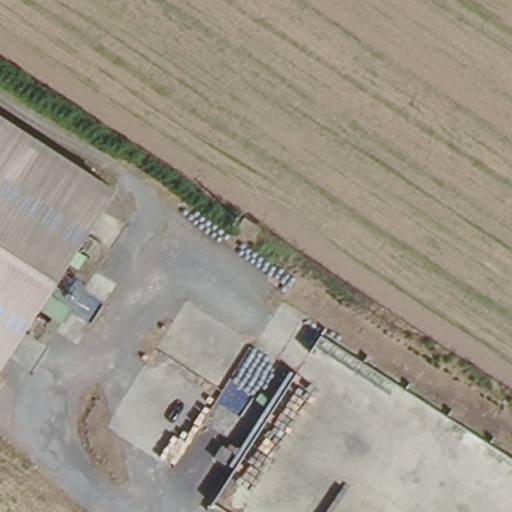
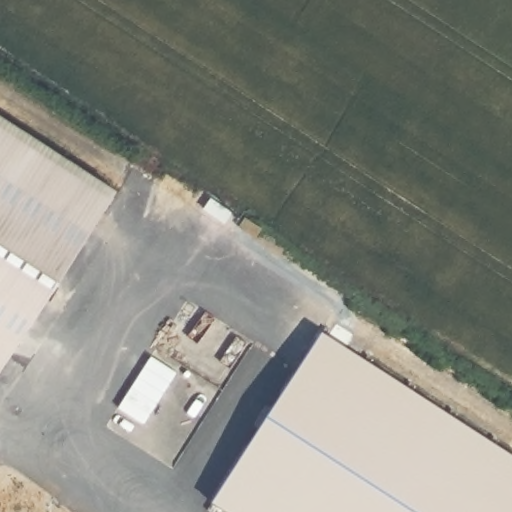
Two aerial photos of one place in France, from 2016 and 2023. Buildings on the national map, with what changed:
unchanged [(1,374),(0,373),(0,109),(122,187),(1,374)]
demolished [(512,443),(512,512),(211,512),(205,508),(325,323),(512,443)]

